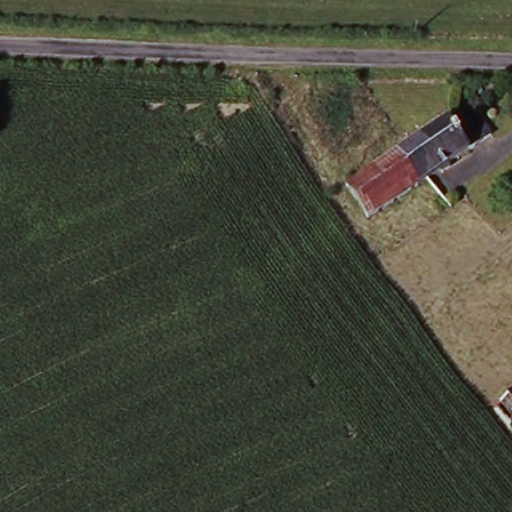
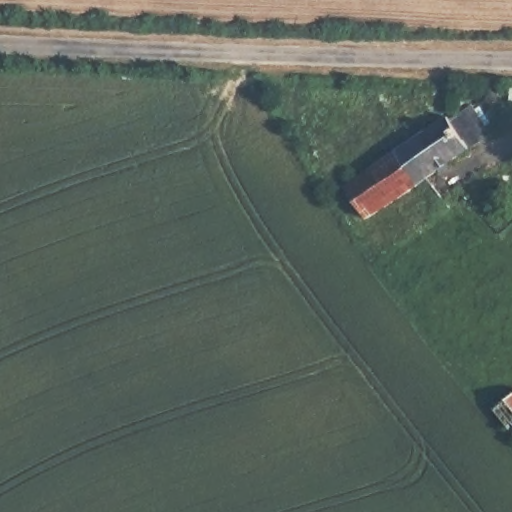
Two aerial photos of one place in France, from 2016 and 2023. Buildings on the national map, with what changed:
unchanged [(405,146),(471,101),(491,133),(426,179),(405,146)]
unchanged [(367,219),(346,185),(405,146),(426,179),(367,219)]
unchanged [(512,430),(495,408),(512,395),(512,430)]

